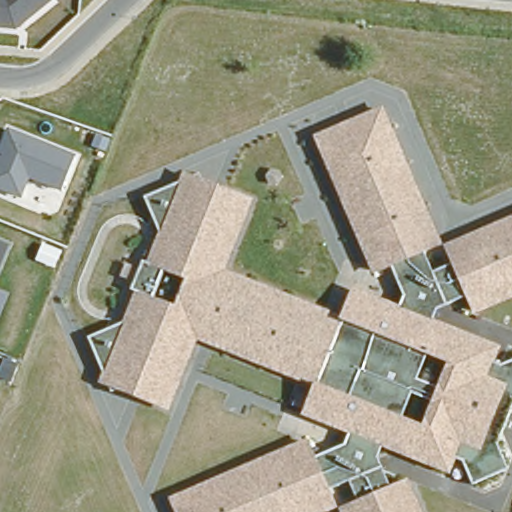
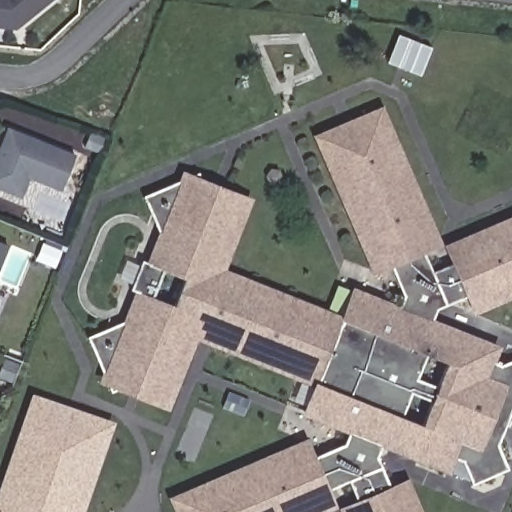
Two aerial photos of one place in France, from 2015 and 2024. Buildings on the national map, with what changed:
unchanged [(0,28),(0,0),(55,0),(16,30),(0,28)]
unchanged [(475,315),(466,299),(437,312),(434,320),(502,346),(496,363),(502,366),(512,361),(512,409),(498,443),(508,471),(473,485),(464,463),(456,460),(451,473),(382,447),(378,459),(391,487),(411,477),(425,512),(340,512),(339,509),(331,512),(174,512),(168,496),(310,440),(317,456),(344,446),(350,433),(302,415),(312,387),(198,342),(170,412),(99,383),(106,369),(90,338),(122,325),(161,231),(146,197),(182,184),(185,172),(254,199),(228,270),(344,316),(358,287),(400,307),(405,295),(393,268),(373,276),(314,135),(382,106),(444,244),(512,216),(512,299),(475,315)]
unchanged [(31,178),(21,199),(0,189),(0,151),(10,128),(75,155),(61,191),(31,178)]
unchanged [(0,239),(11,244),(0,268),(0,239)]
new [(86,512),(0,512),(0,491),(31,397),(115,423),(86,512)]

